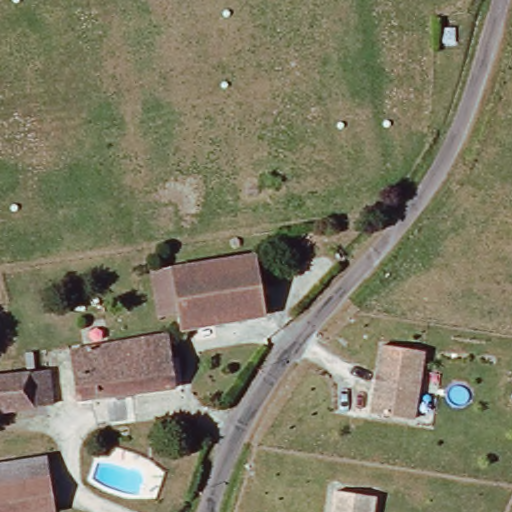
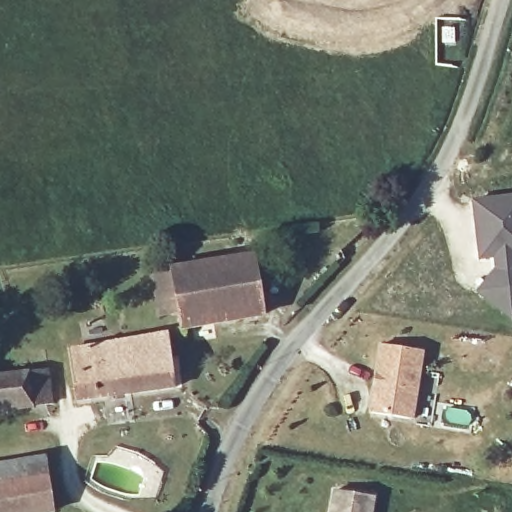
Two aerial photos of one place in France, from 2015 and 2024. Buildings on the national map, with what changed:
new [(512,321),(510,323),(473,292),(495,267),(493,258),(476,260),(470,200),(512,196),(512,321)]
unchanged [(253,256),(261,313),(180,325),(179,314),(157,317),(151,271),(253,256)]
unchanged [(167,336),(174,391),(74,402),(69,346),(167,336)]
unchanged [(383,348),(425,355),(413,423),(372,416),(383,348)]
unchanged [(36,368),(40,402),(0,407),(0,373),(36,368)]
unchanged [(0,512),(0,466),(42,462),(46,512),(0,512)]
unchanged [(371,498),(369,512),(330,512),(332,493),(371,498)]

